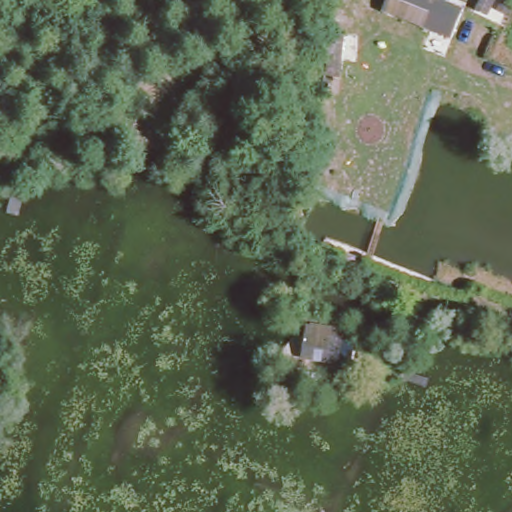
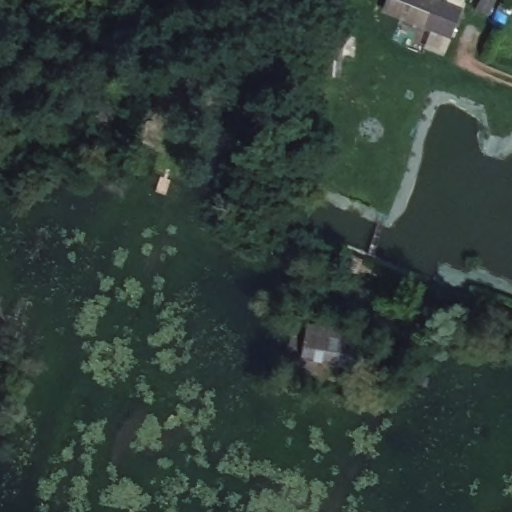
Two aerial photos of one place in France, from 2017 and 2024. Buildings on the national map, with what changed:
unchanged [(385,0),(430,0),(460,11),(446,42),(378,17),(385,0)]
unchanged [(104,106),(108,119),(94,123),(90,111),(104,106)]
unchanged [(0,153),(0,143),(13,145),(11,155),(0,153)]
unchanged [(341,333),(333,363),(293,354),(301,324),(341,333)]

